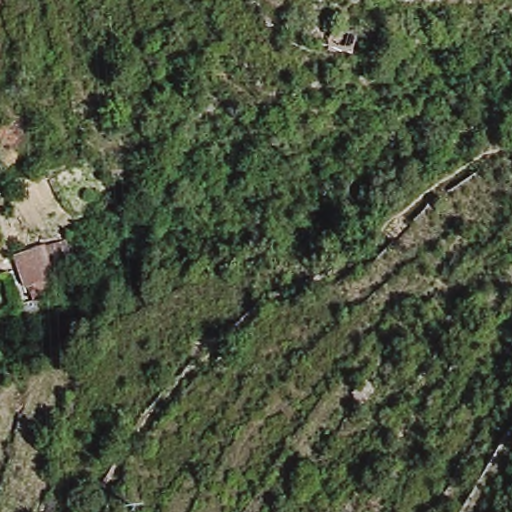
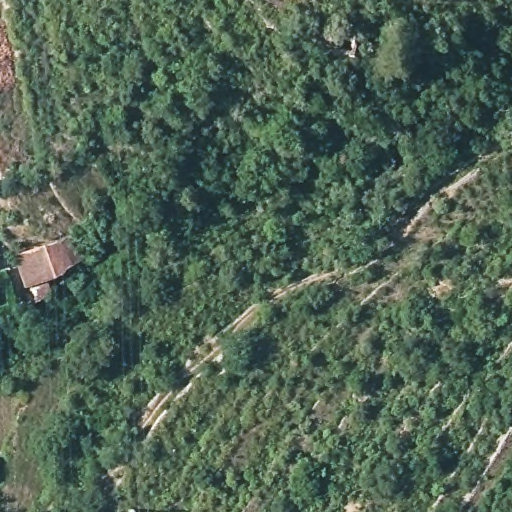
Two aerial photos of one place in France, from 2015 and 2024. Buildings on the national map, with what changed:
unchanged [(330,26),(353,32),(347,53),(324,45),(330,26)]
unchanged [(12,252),(71,232),(81,265),(25,290),(12,252)]
unchanged [(361,400),(350,392),(361,377),(372,384),(361,400)]

